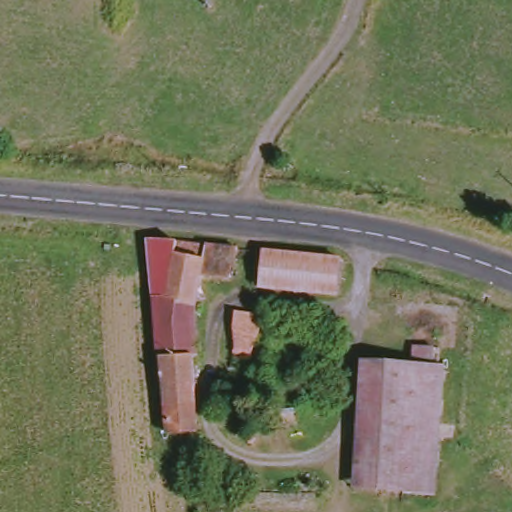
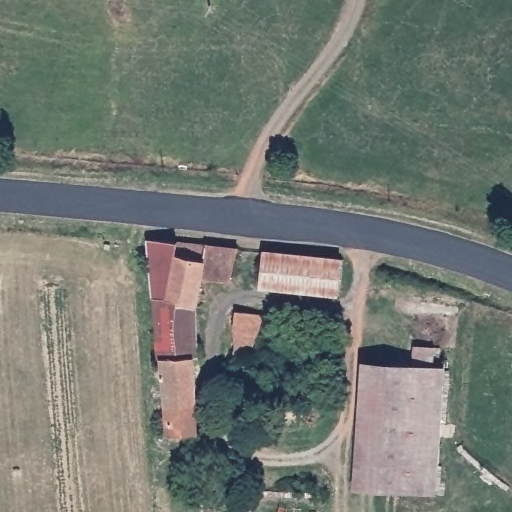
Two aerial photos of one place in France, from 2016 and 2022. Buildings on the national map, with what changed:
unchanged [(234,282),(209,277),(202,308),(198,356),(206,433),(172,437),(163,360),(157,300),(150,238),(176,244),(211,246),(240,249),(234,282)]
unchanged [(305,252),(297,290),(262,285),(268,245),(305,252)]
unchanged [(340,297),(297,290),(305,252),(343,260),(340,297)]
unchanged [(257,313),(255,357),(233,356),(235,312),(257,313)]
unchanged [(359,491),(366,363),(413,366),(415,348),(438,350),(437,366),(447,366),(440,495),(359,491)]

